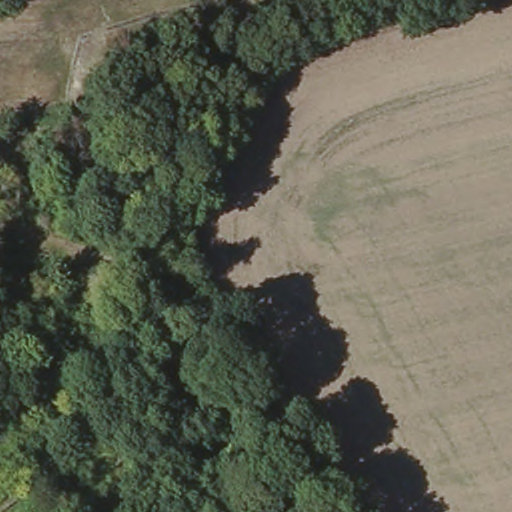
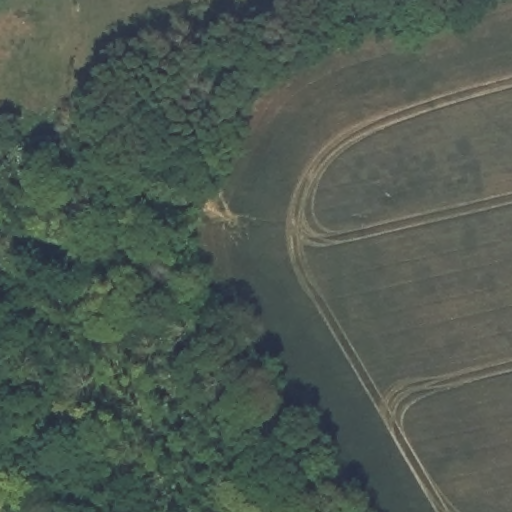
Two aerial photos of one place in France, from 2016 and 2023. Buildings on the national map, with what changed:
[]

